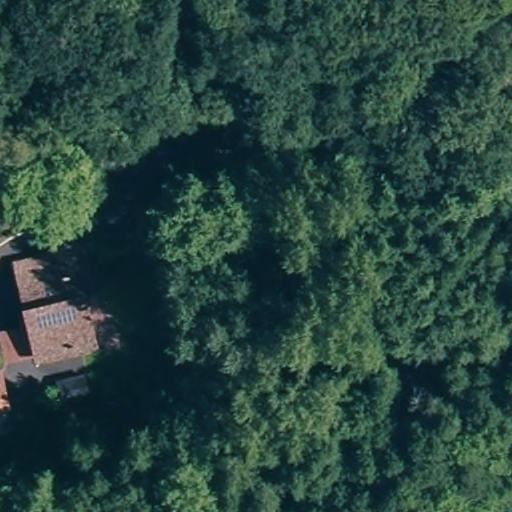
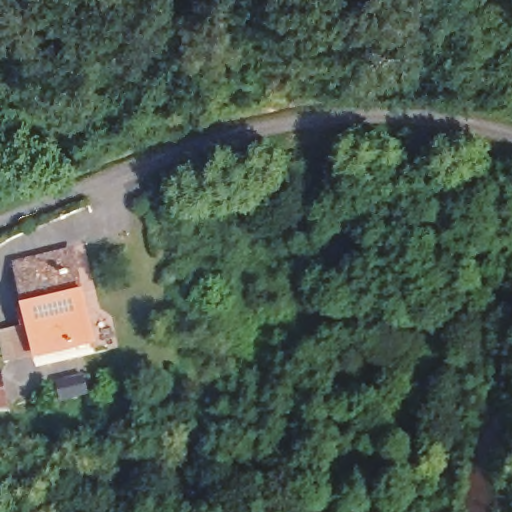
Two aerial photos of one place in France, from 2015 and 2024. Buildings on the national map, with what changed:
unchanged [(101,338),(72,345),(41,352),(19,260),(79,246),(101,338)]
unchanged [(0,408),(0,382),(13,378),(19,404),(0,408)]

